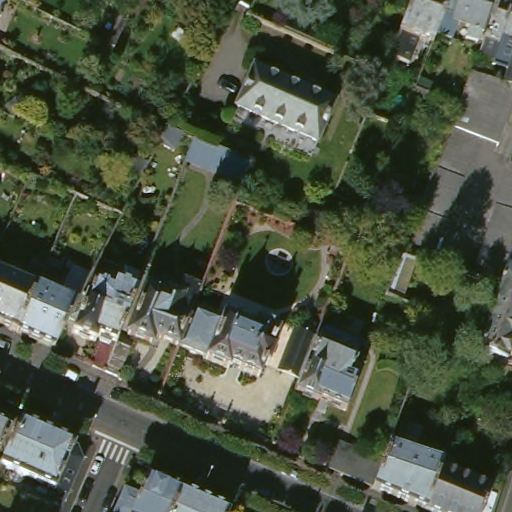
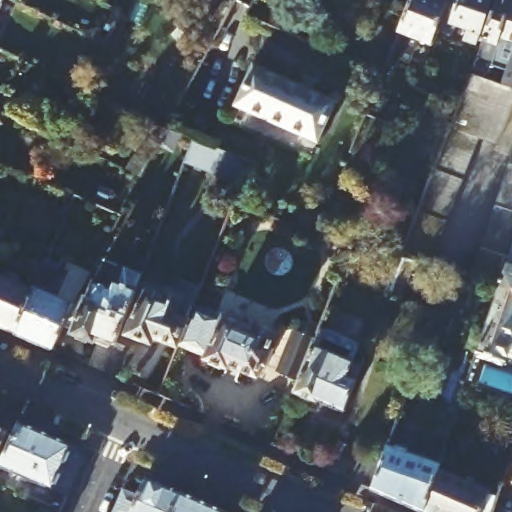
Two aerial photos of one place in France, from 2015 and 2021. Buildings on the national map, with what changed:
unchanged [(1,44),(0,43),(0,0),(19,0),(1,44)]
unchanged [(417,0),(447,0),(455,3),(443,34),(438,46),(419,37),(411,55),(407,53),(405,59),(395,55),(417,0)]
unchanged [(457,0),(497,0),(479,44),(468,40),(473,28),(462,24),(455,40),(443,34),(455,3),(457,0)]
unchanged [(496,66),(498,61),(503,46),(488,40),(503,0),(504,0),(512,3),(512,72),(496,66)]
unchanged [(270,62),(352,102),(331,145),(249,104),(270,62)]
unchanged [(512,90),(512,120),(502,146),(485,139),(435,264),(408,256),(406,255),(463,106),(475,76),(478,66),(485,69),(482,79),(507,88),(512,90)]
unchanged [(507,88),(512,73),(512,90),(507,88)]
unchanged [(91,94),(100,99),(116,106),(96,149),(70,137),(91,94)]
unchanged [(121,109),(148,121),(127,164),(100,151),(121,109)]
unchanged [(165,130),(181,136),(174,153),(157,146),(165,130)]
unchanged [(265,160),(255,185),(196,163),(205,136),(265,160)]
unchanged [(506,286),(476,277),(512,174),(512,269),(506,286)]
unchanged [(0,245),(7,248),(0,265),(0,245)]
unchanged [(115,367),(100,361),(111,334),(109,333),(106,339),(81,328),(97,292),(100,293),(106,276),(119,281),(121,276),(125,278),(126,274),(132,277),(138,263),(154,270),(155,271),(130,330),(130,331),(127,337),(142,344),(129,373),(115,367)]
unchanged [(46,285),(27,329),(0,317),(0,265),(46,285)]
unchanged [(189,341),(164,331),(161,337),(138,328),(164,269),(184,278),(182,282),(190,285),(192,279),(209,285),(203,300),(205,301),(203,304),(189,340),(189,341)]
unchanged [(472,384),(483,354),(506,286),(512,269),(512,397),(472,384)]
unchanged [(46,285),(47,282),(87,299),(64,345),(27,329),(46,285)]
unchanged [(203,304),(205,301),(233,313),(234,310),(240,312),(242,307),(255,313),(252,319),(266,325),(268,318),(290,327),(282,343),(286,345),(279,363),(275,361),(270,373),(240,359),(237,363),(215,354),(216,351),(189,340),(203,304)]
unchanged [(291,366),(308,325),(326,333),(323,341),(365,358),(362,367),(370,370),(376,354),(378,355),(356,407),(329,395),(328,398),(305,388),(310,374),(291,366)]
unchanged [(25,417),(84,442),(89,455),(67,506),(59,502),(65,487),(5,461),(25,417)]
unchanged [(0,457),(0,420),(15,426),(0,457)]
unchanged [(402,446),(410,449),(411,446),(415,445),(418,446),(421,449),(421,452),(434,457),(437,451),(445,455),(442,460),(455,464),(454,468),(439,512),(436,511),(387,489),(388,487),(397,460),(402,446)]
unchanged [(368,447),(397,460),(388,487),(387,489),(356,476),(368,447)]
unchanged [(498,512),(439,512),(454,468),(506,491),(498,512)]
unchanged [(148,492),(156,473),(190,487),(179,512),(128,512),(124,510),(134,486),(148,492)]
unchanged [(237,512),(179,512),(190,487),(239,508),(237,512)]

